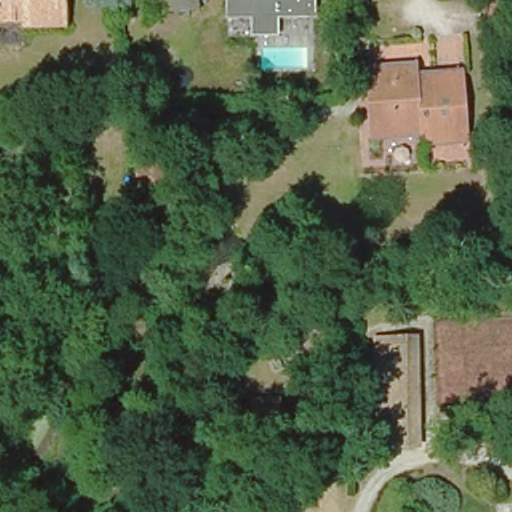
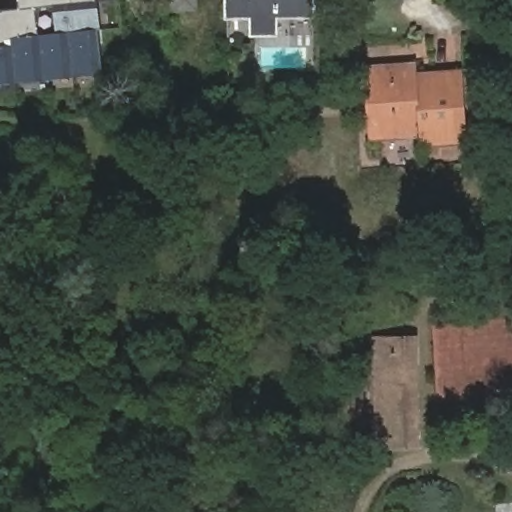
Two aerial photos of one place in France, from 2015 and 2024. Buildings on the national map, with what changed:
demolished [(24,26),(24,21),(0,21),(0,0),(66,0),(66,26),(24,26)]
new [(0,84),(0,10),(21,8),(20,0),(97,0),(97,1),(100,1),(104,28),(99,29),(104,73),(0,84)]
unchanged [(196,0),(197,11),(160,11),(159,0),(196,0)]
unchanged [(283,19),(285,36),(256,36),(256,19),(232,19),(232,3),(232,0),(319,0),(320,19),(283,19)]
unchanged [(466,133),(424,136),(423,125),(377,129),(373,63),(421,60),(421,70),(435,69),(461,67),(466,133)]
unchanged [(378,338),(410,338),(413,446),(381,447),(378,338)]
unchanged [(363,375),(368,433),(351,435),(346,376),(363,375)]

